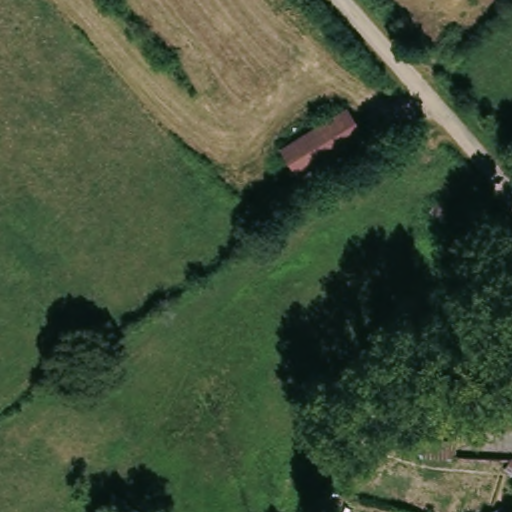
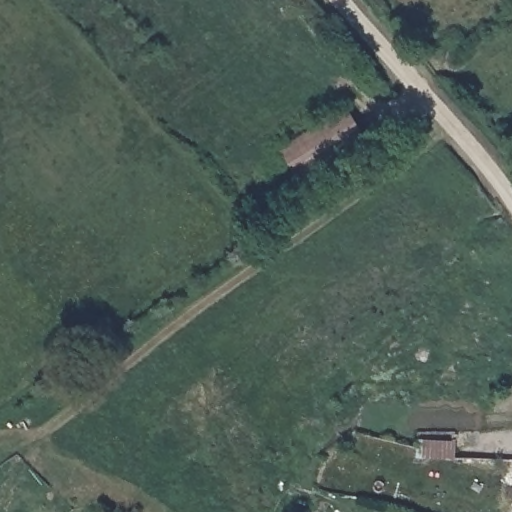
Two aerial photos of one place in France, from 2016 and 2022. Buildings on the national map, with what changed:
unchanged [(365,139),(302,176),(285,149),(349,112),(365,139)]
unchanged [(420,441),(456,442),(456,459),(418,459),(420,443),(420,441)]
unchanged [(512,471),(512,476),(510,474),(512,471)]

